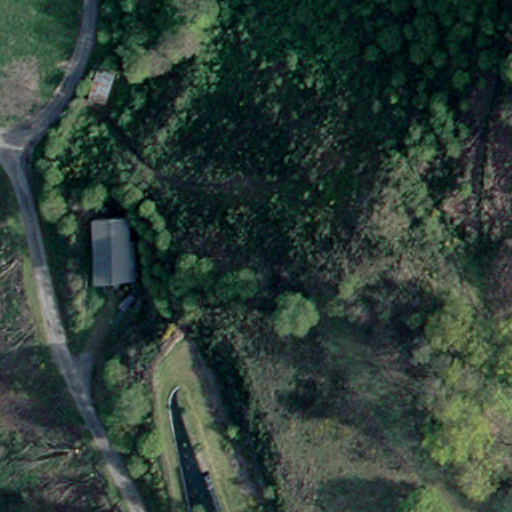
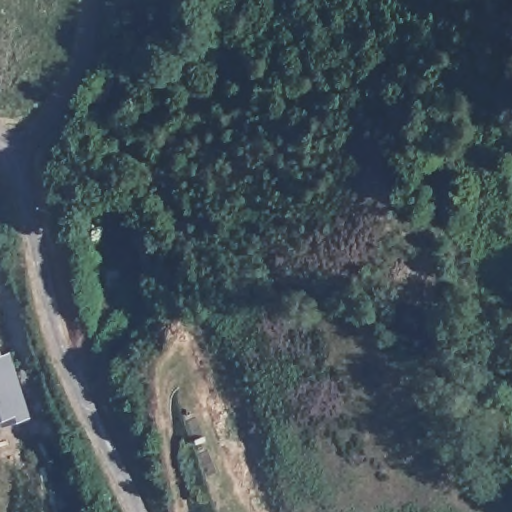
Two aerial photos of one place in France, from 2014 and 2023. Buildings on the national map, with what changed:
new [(0,421),(0,357),(6,355),(9,365),(21,406),(23,414),(0,421)]

